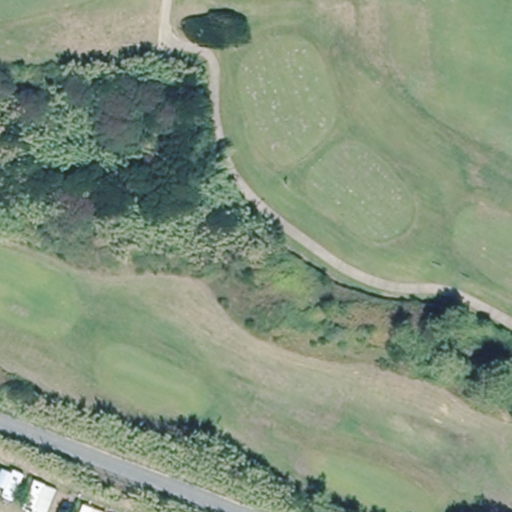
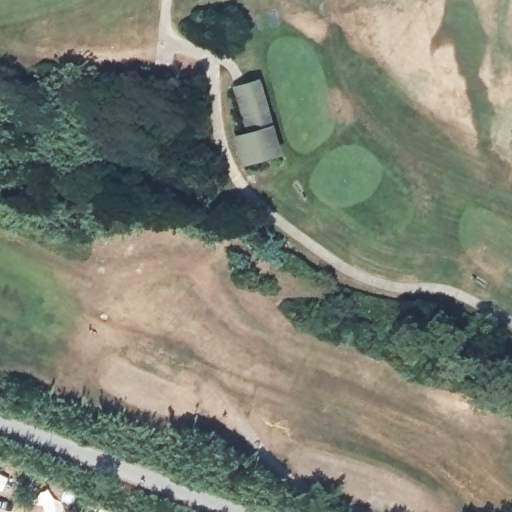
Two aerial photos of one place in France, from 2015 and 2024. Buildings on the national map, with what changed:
new [(242,167),(233,136),(246,132),(232,87),(260,79),(282,155),(242,167)]

